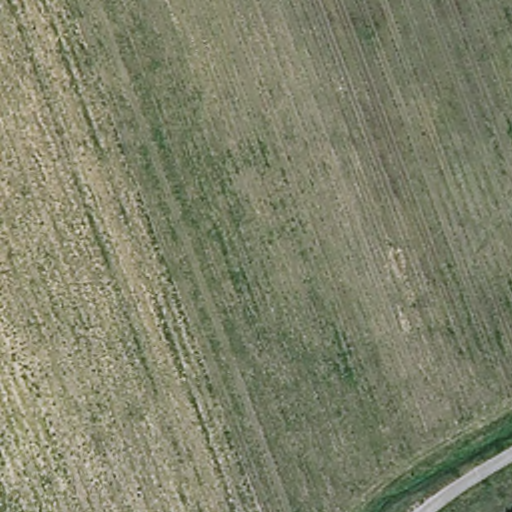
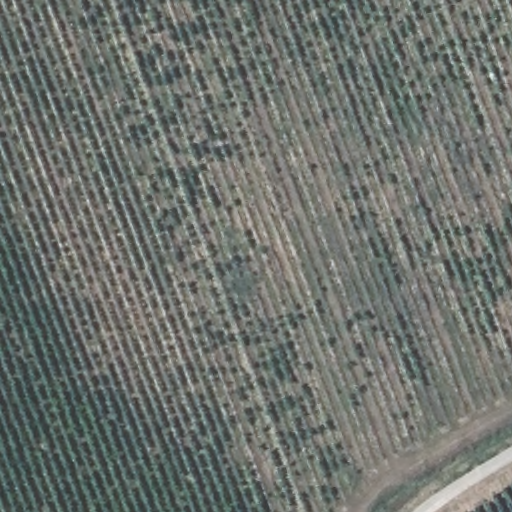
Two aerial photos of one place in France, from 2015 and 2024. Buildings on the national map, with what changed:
[]

